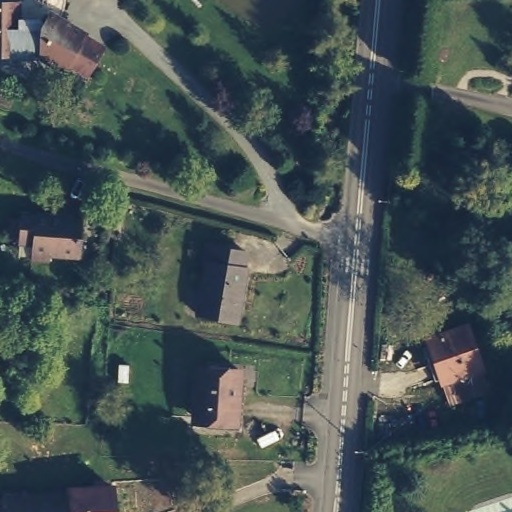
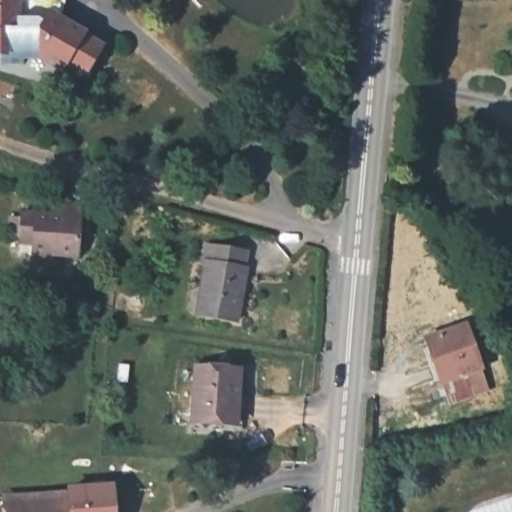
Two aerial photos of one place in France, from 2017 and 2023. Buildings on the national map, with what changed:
unchanged [(20,0),(64,0),(65,5),(58,19),(51,15),(42,30),(19,25),(16,7),(20,0)]
unchanged [(19,25),(42,30),(51,15),(58,19),(83,35),(79,40),(97,53),(84,75),(66,67),(62,72),(41,61),(24,61),(24,68),(4,69),(3,57),(0,57),(0,7),(16,7),(19,25)]
unchanged [(49,210),(52,194),(82,197),(81,210),(79,250),(49,251),(49,254),(14,252),(15,237),(4,236),(6,214),(18,214),(18,210),(49,210)]
unchanged [(196,308),(208,237),(248,247),(236,316),(196,308)]
unchanged [(442,382),(426,333),(467,317),(487,366),(442,382)]
unchanged [(188,432),(189,418),(192,368),(237,371),(235,418),(234,432),(188,432)]
unchanged [(69,482),(69,472),(116,472),(116,512),(4,512),(4,483),(69,482)]

